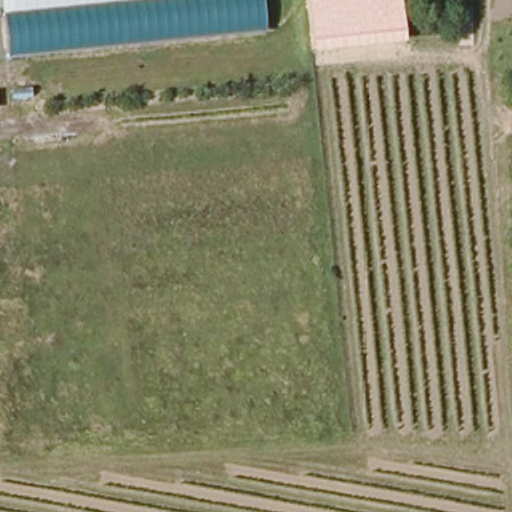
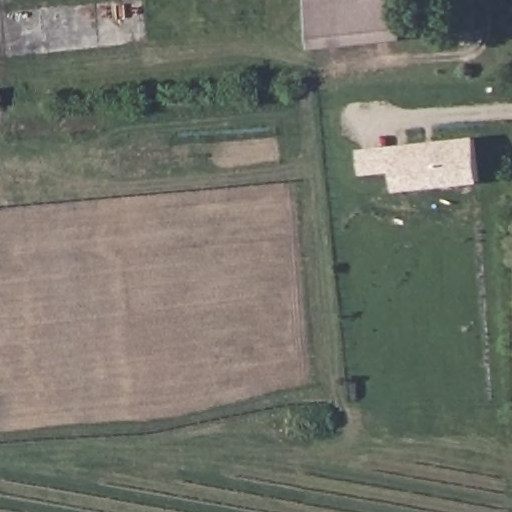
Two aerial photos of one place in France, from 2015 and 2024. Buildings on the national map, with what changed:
demolished [(7,62),(1,0),(261,0),(263,27),(7,62)]
unchanged [(308,0),(401,0),(405,41),(312,50),(308,0)]
new [(362,176),(360,150),(475,137),(480,183),(397,192),(395,172),(362,176)]

